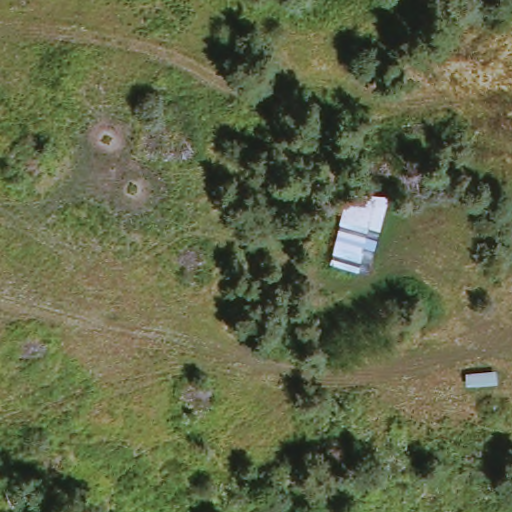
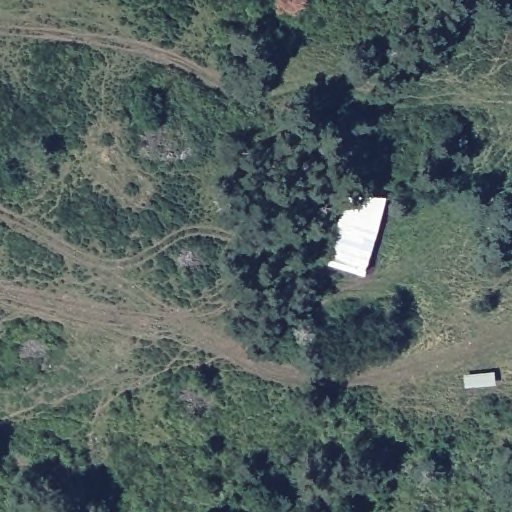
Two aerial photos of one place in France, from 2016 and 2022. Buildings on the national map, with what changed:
unchanged [(366,271),(328,261),(347,187),(388,190),(366,271)]

